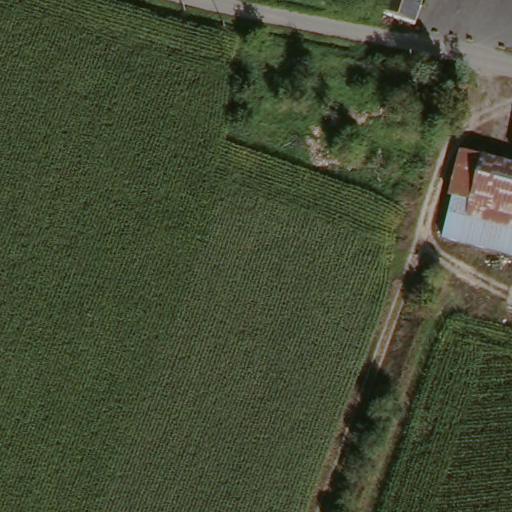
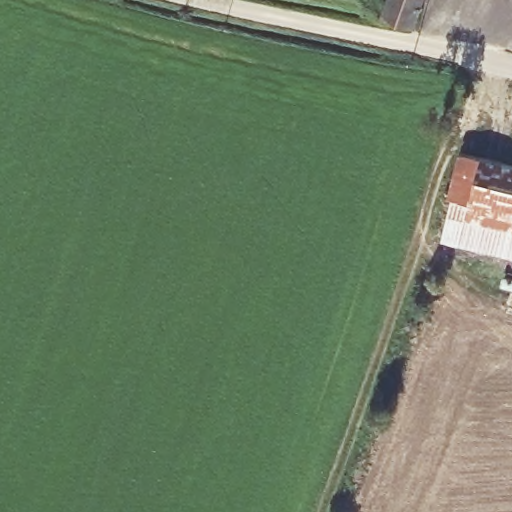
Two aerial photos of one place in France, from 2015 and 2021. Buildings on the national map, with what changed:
unchanged [(411,26),(380,15),(385,0),(419,0),(411,26)]
unchanged [(512,260),(441,243),(449,202),(445,202),(457,156),(512,170),(512,260)]

